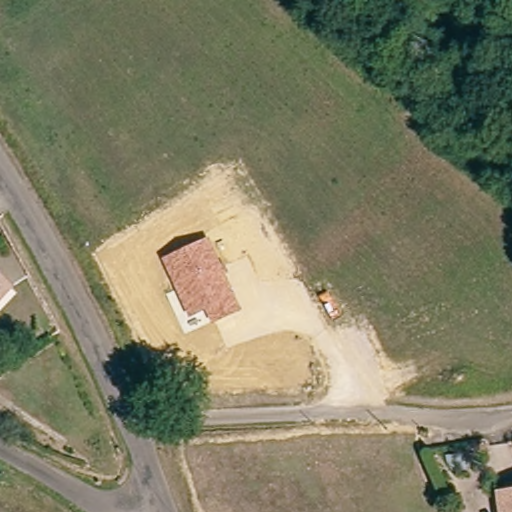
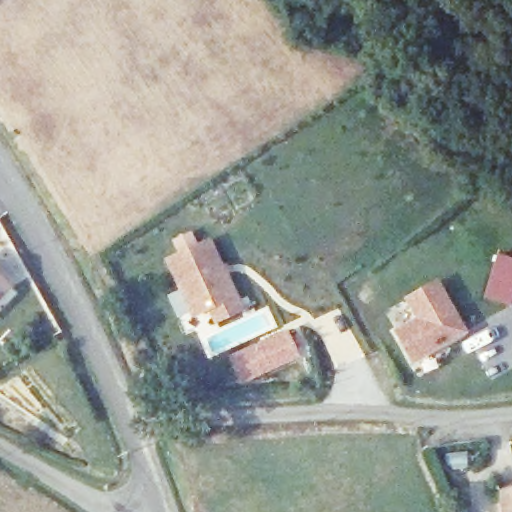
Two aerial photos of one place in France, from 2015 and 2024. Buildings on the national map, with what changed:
unchanged [(214,325),(206,309),(191,317),(163,258),(209,237),(243,311),(214,325)]
new [(484,297),(498,252),(512,257),(512,302),(511,306),(484,297)]
new [(415,317),(404,297),(438,277),(469,333),(412,365),(392,331),(415,317)]
unchanged [(9,287),(0,297),(0,280),(9,287)]
new [(288,331),(301,358),(241,384),(228,357),(288,331)]
unchanged [(512,489),(512,512),(503,512),(501,490),(512,489)]

